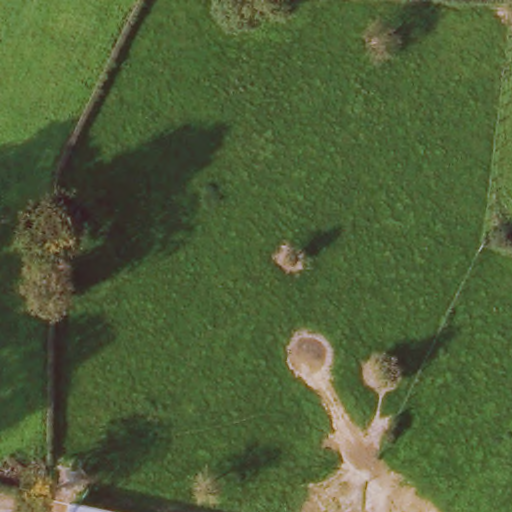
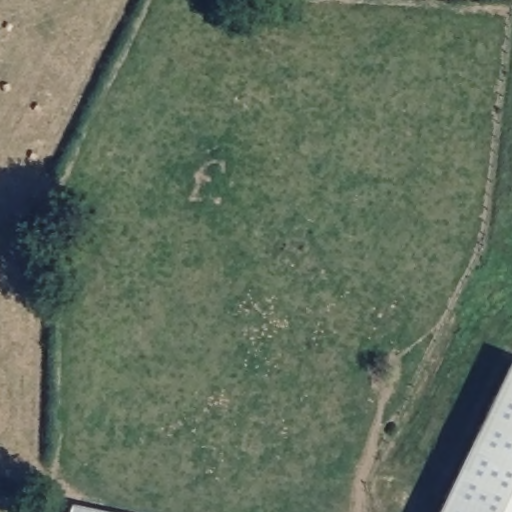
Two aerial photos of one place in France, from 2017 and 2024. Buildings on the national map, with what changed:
new [(512,360),(512,512),(441,512),(512,360)]
unchanged [(70,507),(96,512),(69,512),(70,507)]

